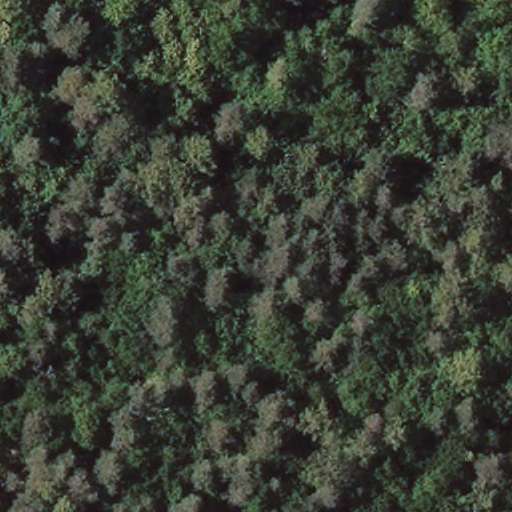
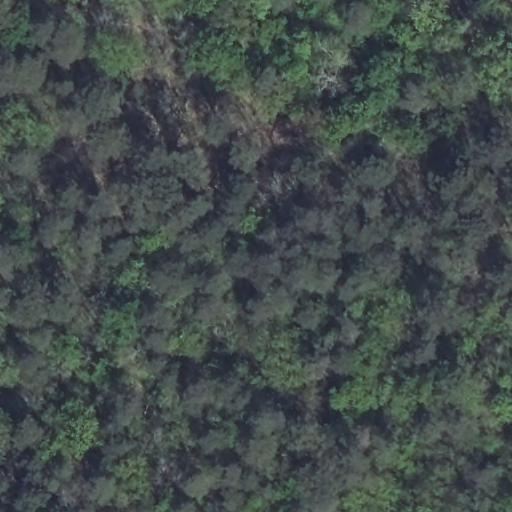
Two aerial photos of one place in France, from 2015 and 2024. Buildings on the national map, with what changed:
[]

